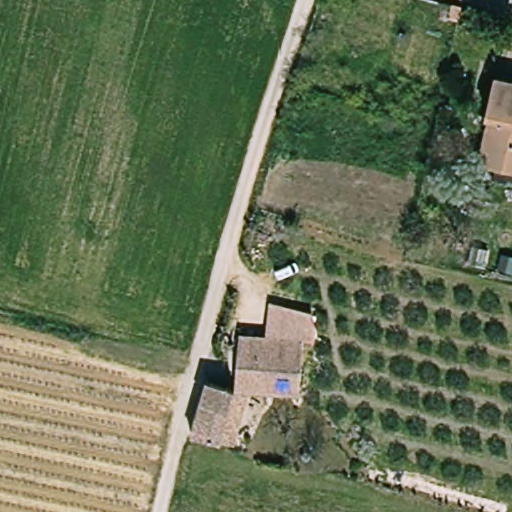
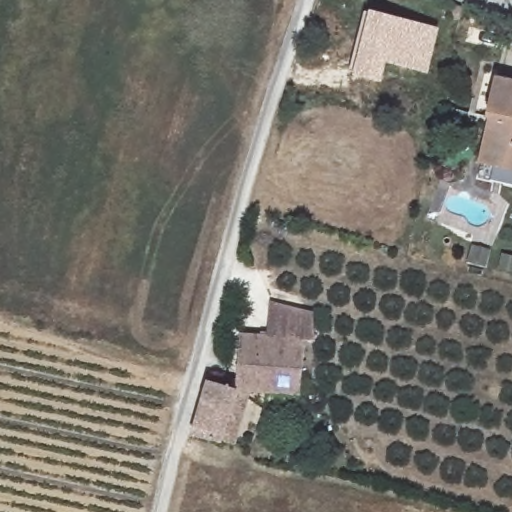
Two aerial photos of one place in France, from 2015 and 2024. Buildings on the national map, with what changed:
new [(369,14),(369,11),(439,28),(428,74),(387,63),(381,83),(354,76),(354,72),(349,71),(364,12),(369,14)]
unchanged [(512,78),(512,166),(483,159),(502,75),(512,78)]
unchanged [(223,436),(223,441),(194,433),(211,377),(238,384),(239,371),(241,349),(242,329),(271,332),(305,334),(302,375),(301,388),(279,387),(266,386),(251,385),(236,438),(223,436)]

